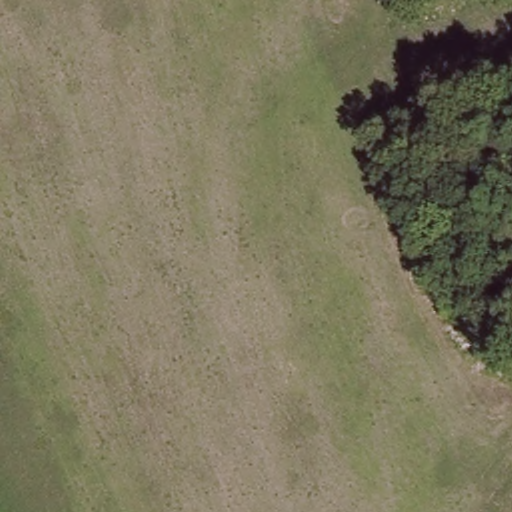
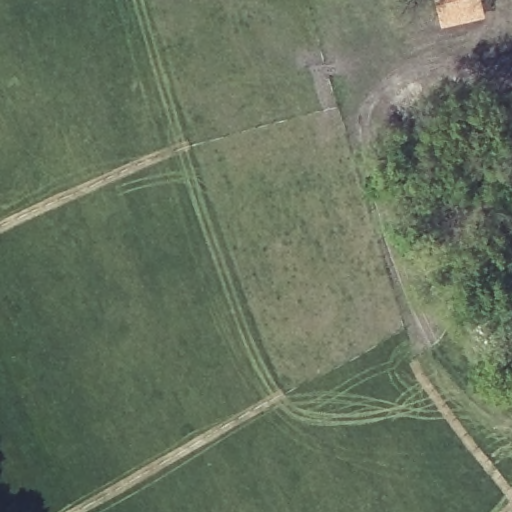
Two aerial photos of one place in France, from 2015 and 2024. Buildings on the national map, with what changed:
new [(437,0),(481,0),(485,18),(443,29),(437,0)]

